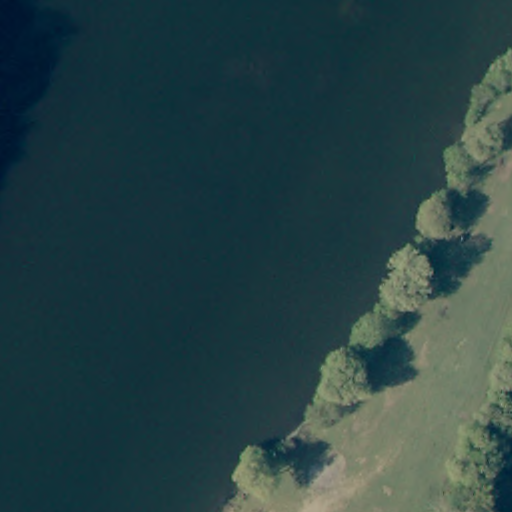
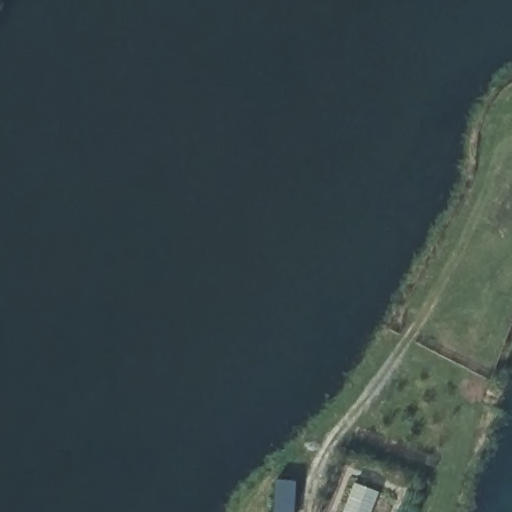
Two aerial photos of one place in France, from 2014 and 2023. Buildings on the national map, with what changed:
new [(342,512),(354,482),(378,492),(371,512),(342,512)]

